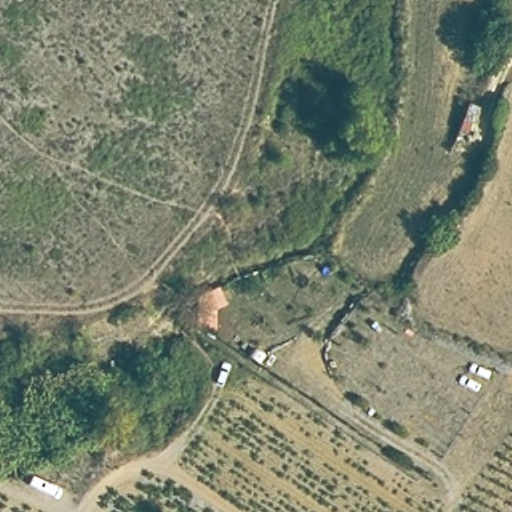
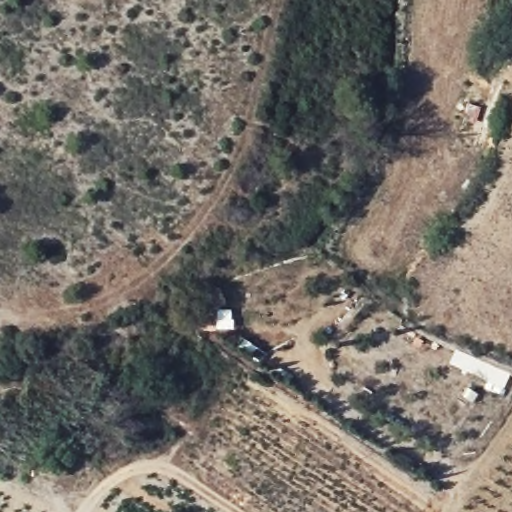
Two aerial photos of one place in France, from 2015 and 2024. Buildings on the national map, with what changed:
[]

